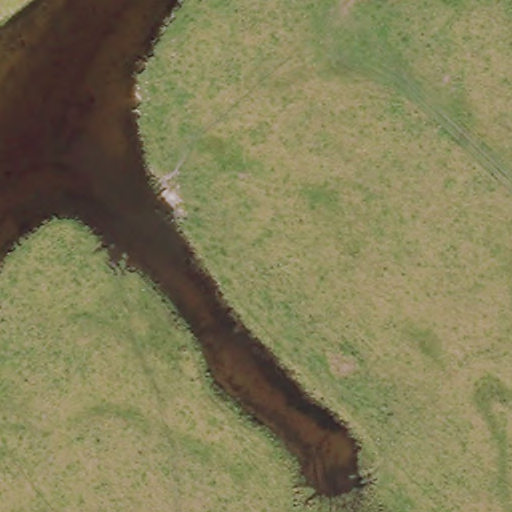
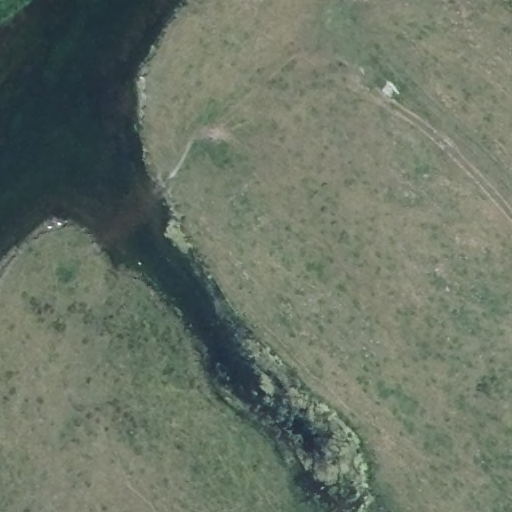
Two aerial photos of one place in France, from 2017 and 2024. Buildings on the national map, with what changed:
unchanged [(363,0),(378,0),(374,6),(363,0)]

